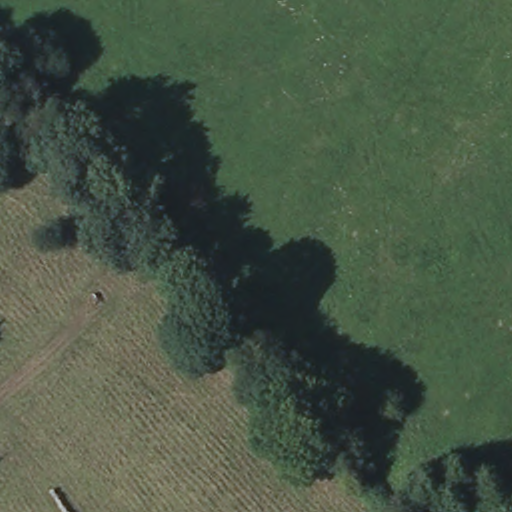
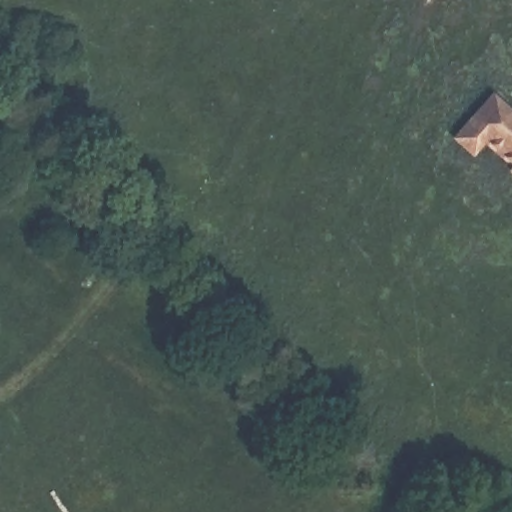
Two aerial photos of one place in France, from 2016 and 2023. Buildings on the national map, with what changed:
new [(493,89),(512,105),(512,161),(488,141),(472,157),(451,134),(493,89)]

